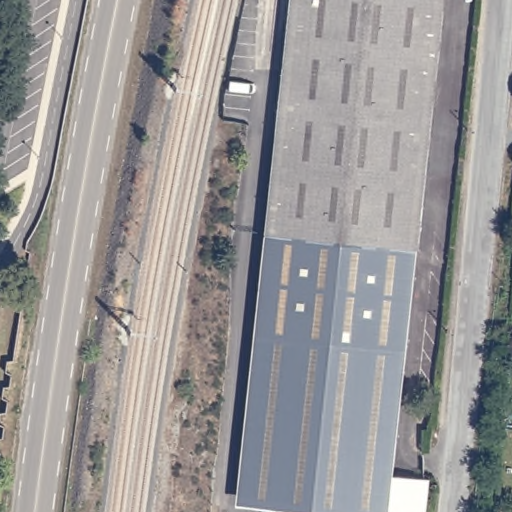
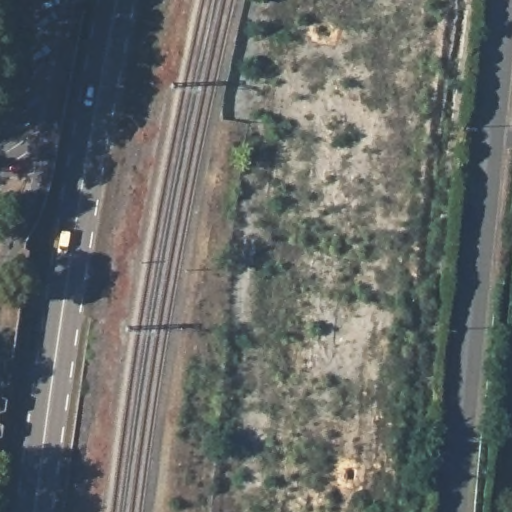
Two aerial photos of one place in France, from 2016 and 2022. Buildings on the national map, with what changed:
demolished [(290,0),(443,0),(407,346),(292,335),(257,331),(290,0)]
unchanged [(503,398),(512,399),(512,414),(502,413),(503,398)]
demolished [(275,505),(342,512),(274,512),(275,505)]

